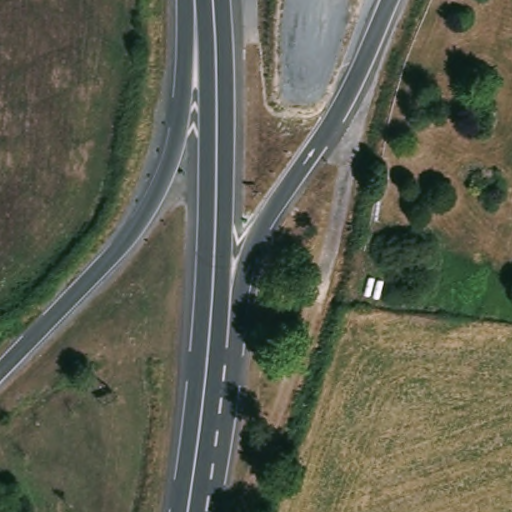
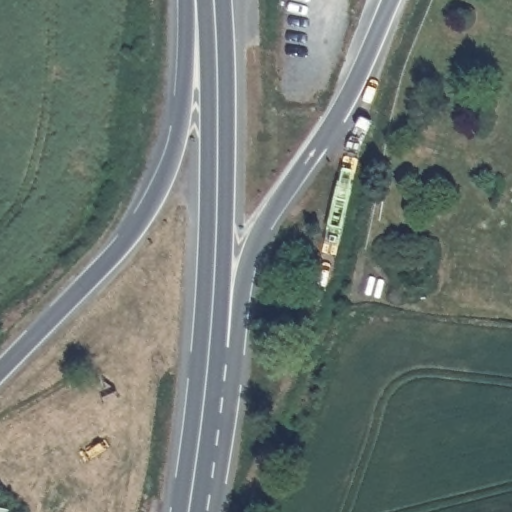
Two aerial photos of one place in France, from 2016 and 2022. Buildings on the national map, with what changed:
unchanged [(10,511),(10,512),(0,512),(0,509),(10,511)]

